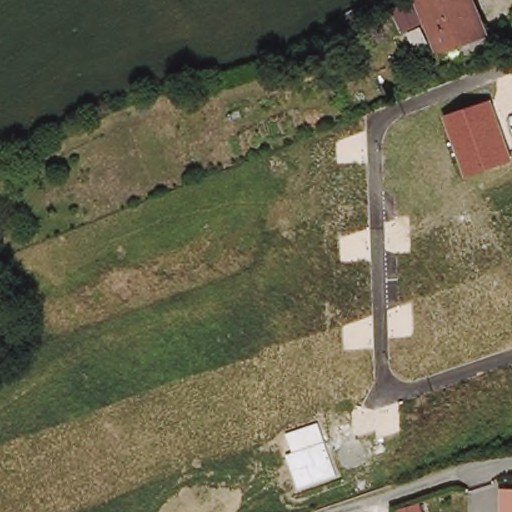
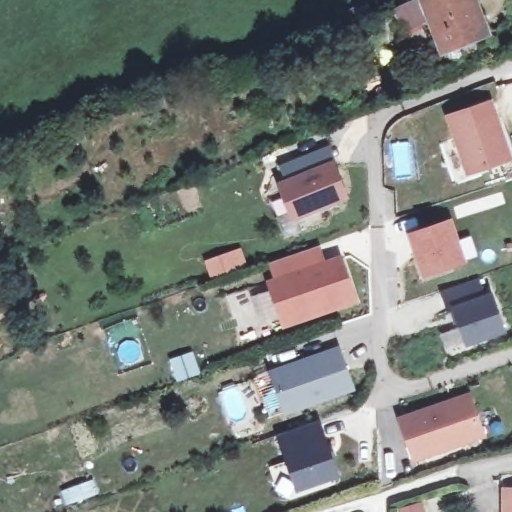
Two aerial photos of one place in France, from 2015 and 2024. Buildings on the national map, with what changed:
unchanged [(421,0),(430,24),(402,34),(392,8),(413,0),(421,0)]
unchanged [(441,50),(421,0),(474,0),(482,21),(475,27),(479,36),(441,50)]
unchanged [(490,101),(510,161),(466,176),(445,116),(490,101)]
new [(294,219),(277,183),(287,180),(280,166),(330,148),(335,161),(351,198),(294,219)]
new [(424,281),(408,232),(449,220),(465,266),(424,281)]
new [(282,327),(280,316),(262,323),(254,298),(271,291),(267,281),(274,277),(269,263),(319,246),(324,261),(342,255),(357,302),(282,327)]
new [(467,346),(459,321),(452,323),(440,291),(478,279),(484,295),(496,291),(511,330),(467,346)]
new [(283,413),(269,371),(340,348),(355,389),(283,413)]
new [(192,353),(200,375),(180,381),(173,360),(192,353)]
new [(413,462),(397,416),(472,391),(489,437),(413,462)]
new [(299,491),(275,435),(322,420),(342,476),(299,491)]
unchanged [(512,512),(505,512),(504,491),(512,491),(512,512)]
unchanged [(426,512),(404,512),(404,511),(424,502),(426,512)]

